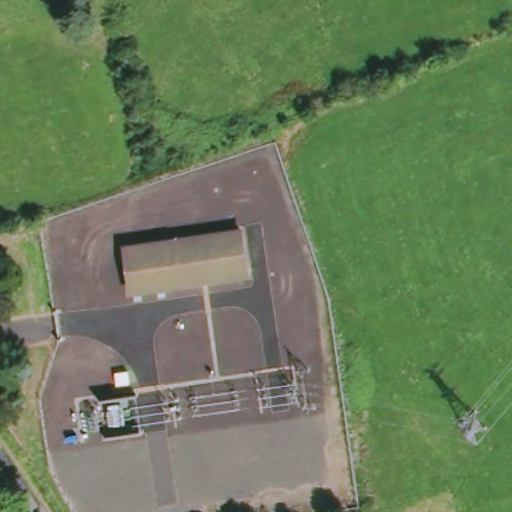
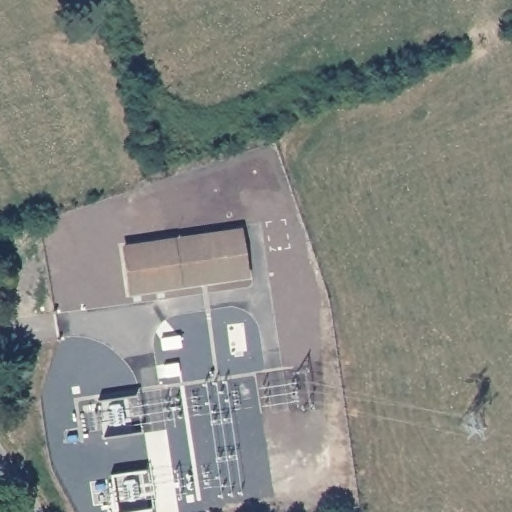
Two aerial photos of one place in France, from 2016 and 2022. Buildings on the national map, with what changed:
unchanged [(174,238),(242,229),(250,279),(178,288),(128,296),(122,246),(174,238)]

